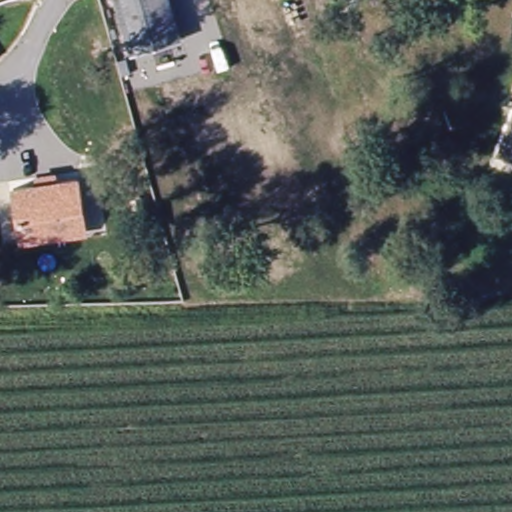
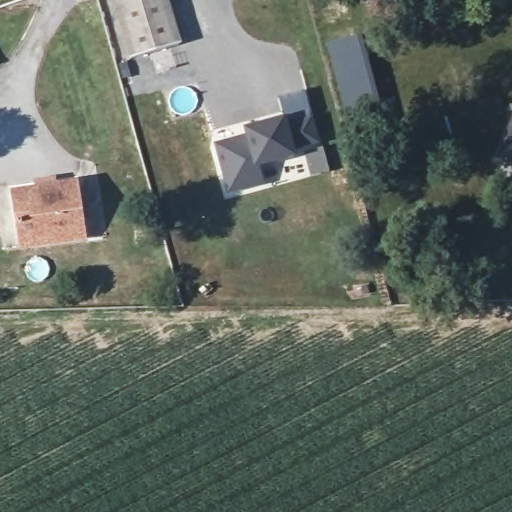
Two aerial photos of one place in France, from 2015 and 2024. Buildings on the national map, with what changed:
unchanged [(129,60),(112,0),(170,0),(182,45),(129,60)]
new [(381,109),(346,118),(326,44),(361,34),(381,109)]
new [(318,143),(293,149),(295,156),(259,168),(263,185),(227,195),(214,144),(245,137),(244,129),(285,117),(288,124),(313,117),(318,143)]
unchanged [(512,159),(512,164),(510,163),(512,159)]
unchanged [(32,185),(32,180),(56,176),(57,184),(79,180),(88,243),(17,253),(9,189),(32,185)]

